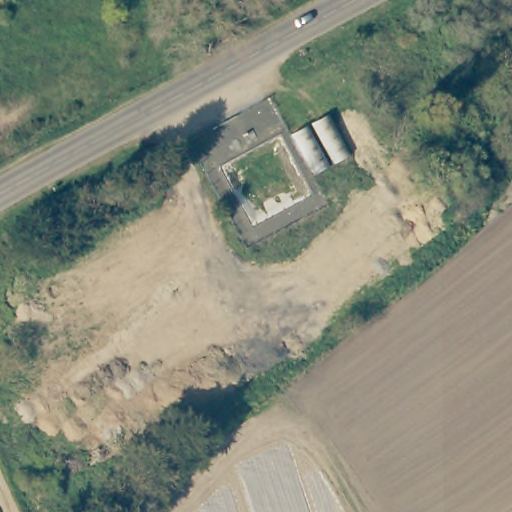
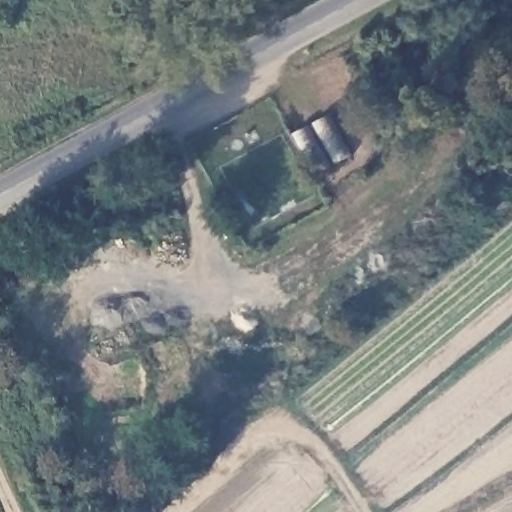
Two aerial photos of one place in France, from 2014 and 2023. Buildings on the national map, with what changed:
unchanged [(335,168),(311,126),(329,116),(353,158),(335,168)]
unchanged [(317,179),(293,136),(307,128),(332,170),(317,179)]

